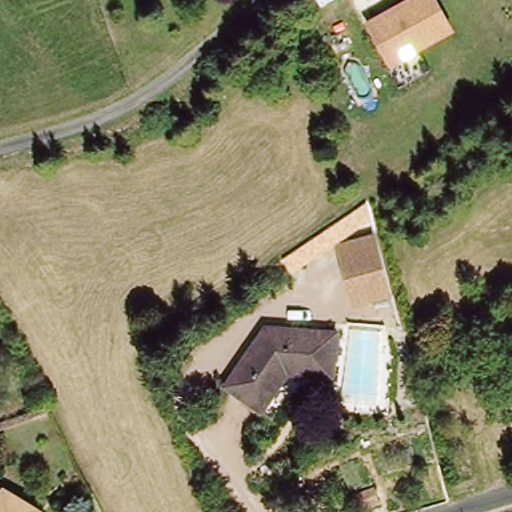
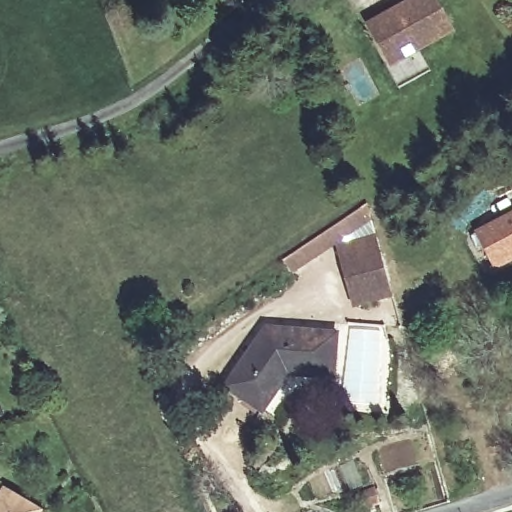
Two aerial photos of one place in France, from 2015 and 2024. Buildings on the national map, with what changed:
unchanged [(409,0),(440,0),(457,32),(391,69),(368,22),(409,0)]
new [(475,234),(512,214),(512,256),(492,267),(475,234)]
unchanged [(373,235),(391,296),(355,306),(337,244),(373,235)]
unchanged [(345,329),(343,375),(302,373),(269,417),(230,389),(276,325),(345,329)]
unchanged [(395,489),(410,486),(412,501),(398,504),(395,489)]
unchanged [(15,488),(50,512),(0,512),(0,510),(15,488)]

